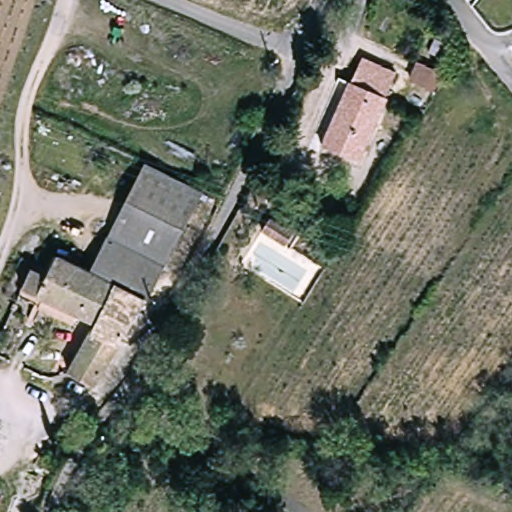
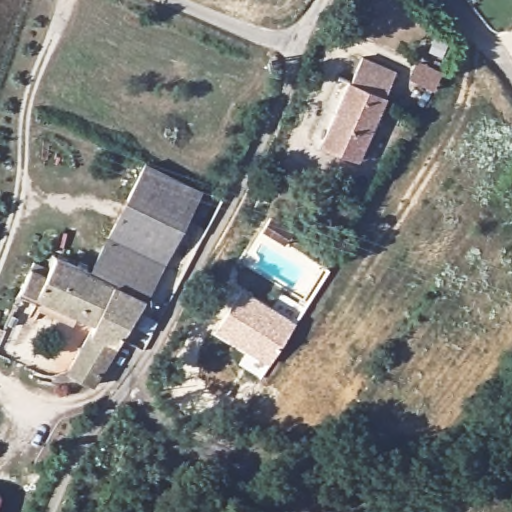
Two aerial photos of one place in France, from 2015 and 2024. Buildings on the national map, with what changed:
unchanged [(420,56),(450,69),(438,90),(414,77),(420,56)]
unchanged [(365,157),(329,141),(356,82),(366,58),(399,73),(389,96),(392,98),(365,157)]
unchanged [(127,245),(167,175),(168,172),(219,195),(176,266),(127,245)]
unchanged [(316,225),(308,237),(287,224),(295,212),(316,225)]
unchanged [(81,333),(47,316),(54,303),(38,294),(57,256),(76,266),(81,255),(110,274),(127,245),(176,266),(174,269),(102,392),(75,377),(102,330),(87,322),(81,333)]
new [(270,365),(215,330),(243,287),(297,323),(270,365)]
unchanged [(0,510),(0,494),(5,495),(0,510)]

